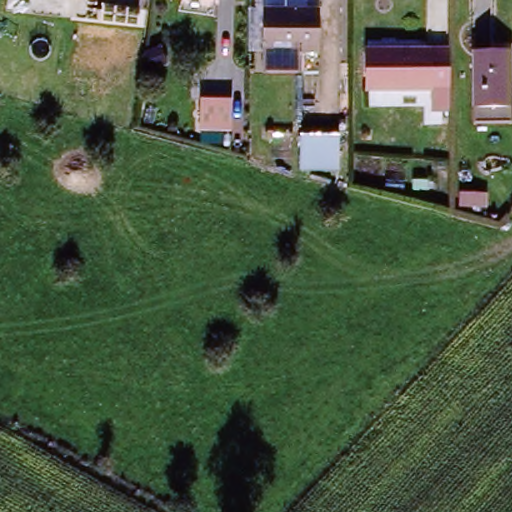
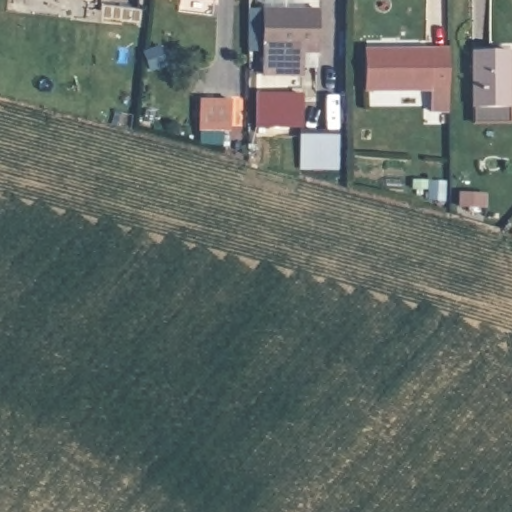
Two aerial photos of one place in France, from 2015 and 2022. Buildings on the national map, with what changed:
unchanged [(320,52),(302,53),(303,72),(265,73),(264,19),(265,9),(301,9),(320,10),(320,52)]
unchanged [(446,85),(365,86),(363,50),(447,49),(446,85)]
unchanged [(475,124),(474,106),(473,52),(507,50),(508,104),(509,124),(475,124)]
new [(303,95),(302,129),(255,129),(255,94),(303,95)]
unchanged [(232,129),(202,127),(202,96),(232,97),(232,129)]
unchanged [(303,165),(305,134),(338,135),(337,166),(303,165)]

